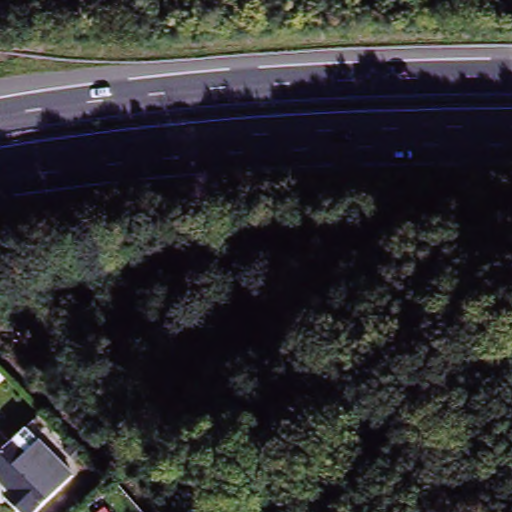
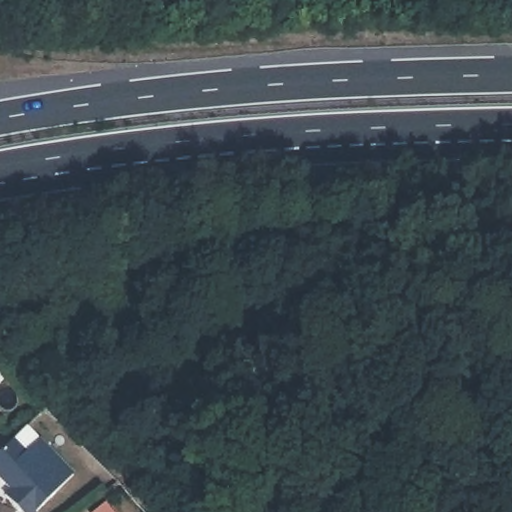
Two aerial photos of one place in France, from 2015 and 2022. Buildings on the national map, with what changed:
unchanged [(0,386),(0,370),(8,378),(0,386)]
unchanged [(29,429),(76,475),(40,512),(20,512),(6,498),(13,492),(0,479),(0,458),(26,431),(29,429)]
unchanged [(104,508),(107,512),(100,512),(104,508)]

